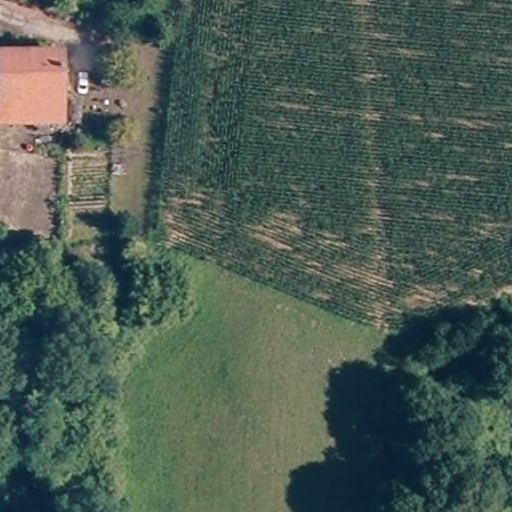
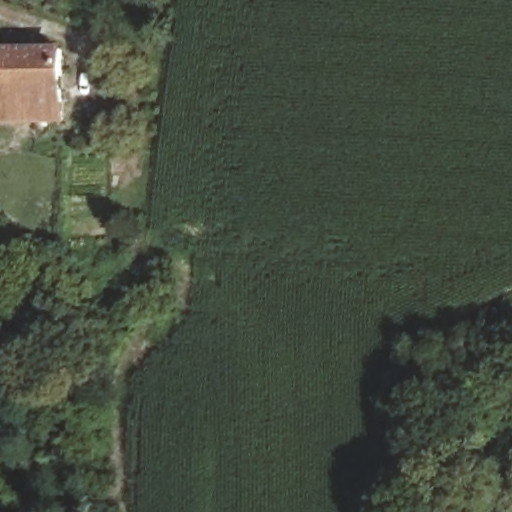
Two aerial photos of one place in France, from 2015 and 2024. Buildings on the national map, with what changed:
unchanged [(15,128),(15,109),(0,109),(0,43),(66,42),(67,128),(15,128)]

